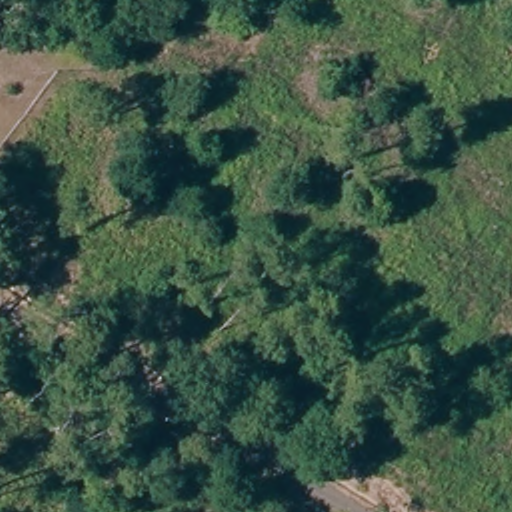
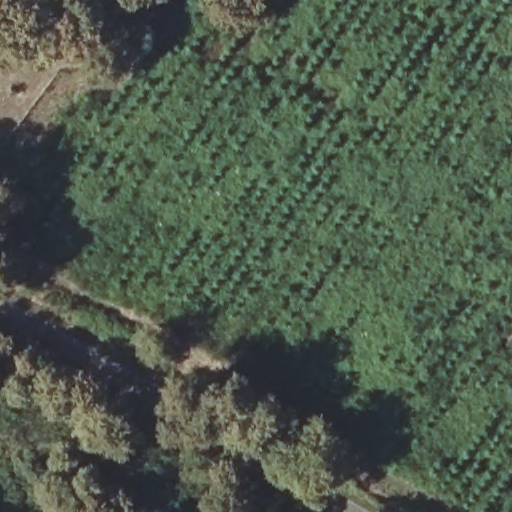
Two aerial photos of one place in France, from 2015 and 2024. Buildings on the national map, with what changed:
[]

